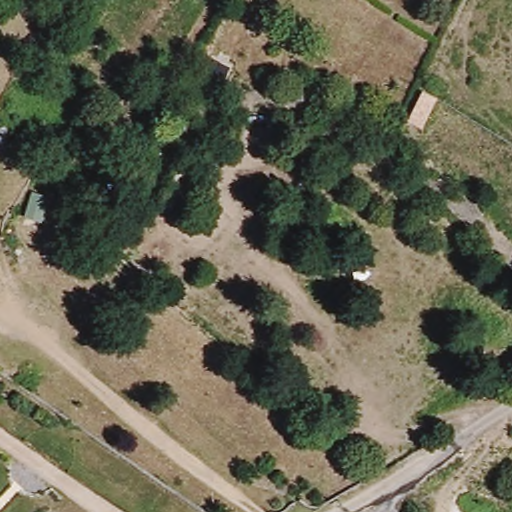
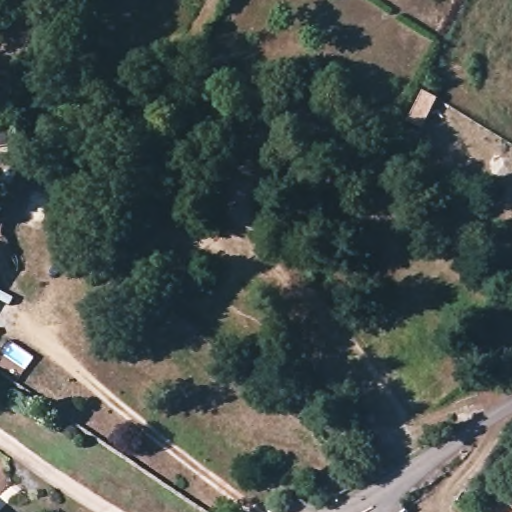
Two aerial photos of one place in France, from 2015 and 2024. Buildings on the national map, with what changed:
unchanged [(419,133),(407,125),(422,95),(435,103),(419,133)]

